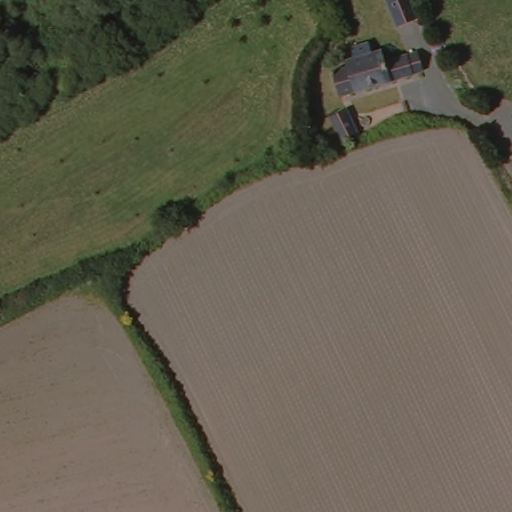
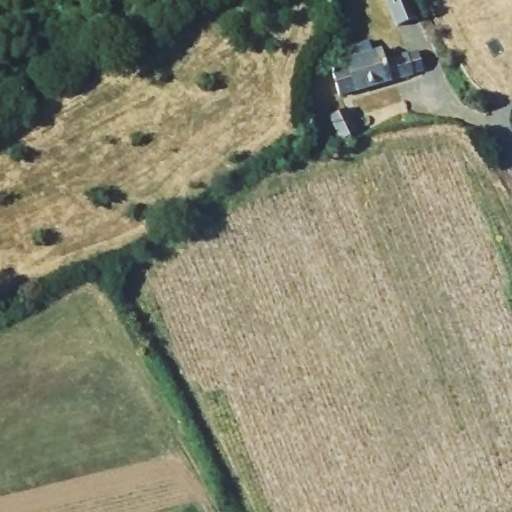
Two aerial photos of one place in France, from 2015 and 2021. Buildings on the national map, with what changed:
unchanged [(383,17),(375,0),(399,0),(403,8),(383,17)]
unchanged [(342,100),(336,75),(348,70),(348,63),(379,50),(383,62),(405,55),(415,51),(422,69),(412,73),(342,100)]
unchanged [(358,126),(336,135),(328,117),(349,108),(358,126)]

